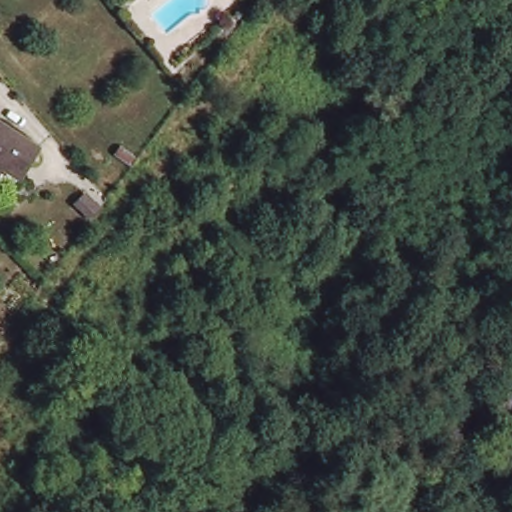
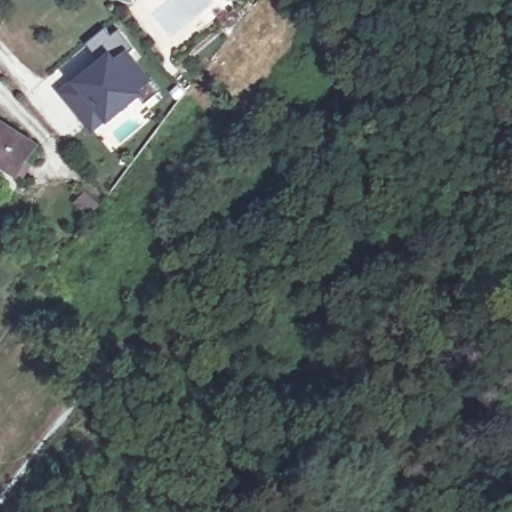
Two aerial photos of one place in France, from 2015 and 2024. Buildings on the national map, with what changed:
unchanged [(226,30),(222,25),(231,18),(235,23),(226,30)]
new [(90,123),(64,92),(89,71),(91,73),(103,63),(86,43),(105,27),(112,35),(119,29),(135,49),(128,55),(150,81),(139,90),(142,94),(110,120),(108,117),(95,129),(90,123)]
unchanged [(0,177),(0,125),(42,151),(23,181),(6,170),(2,177),(0,177)]
unchanged [(97,208),(90,217),(77,203),(86,195),(97,208)]

